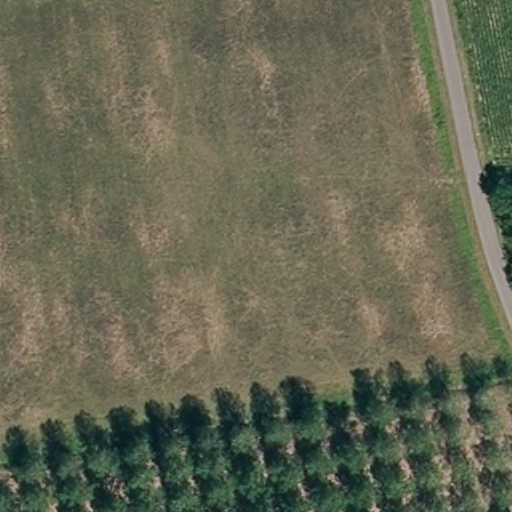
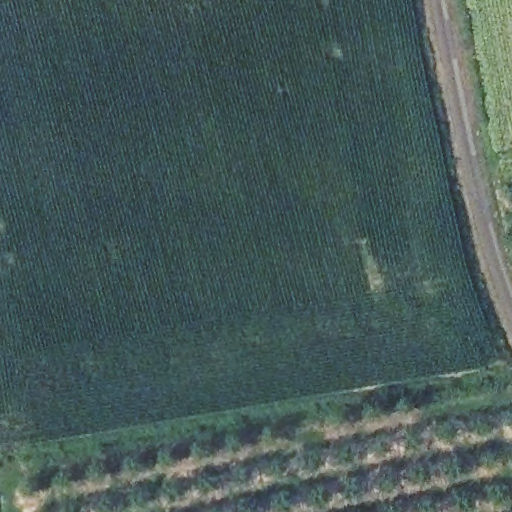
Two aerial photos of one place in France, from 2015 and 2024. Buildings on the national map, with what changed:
[]

